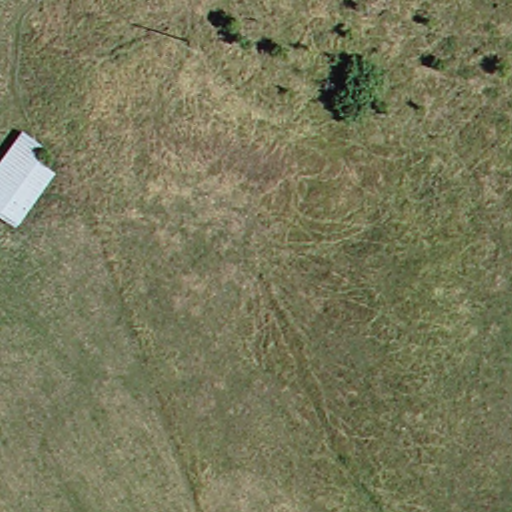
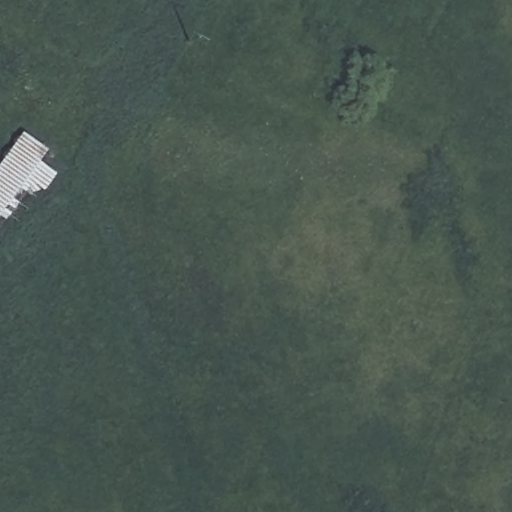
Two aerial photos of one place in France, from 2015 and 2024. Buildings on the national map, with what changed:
unchanged [(12,131),(35,147),(27,159),(45,172),(2,226),(0,225),(0,147),(12,131)]

